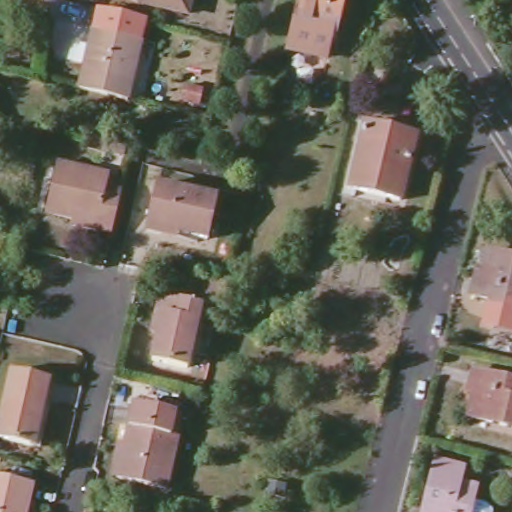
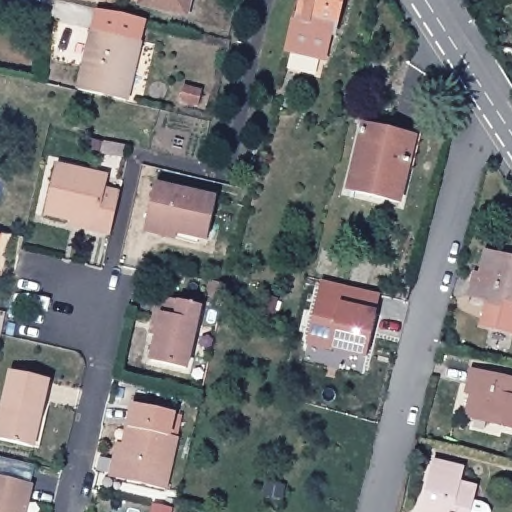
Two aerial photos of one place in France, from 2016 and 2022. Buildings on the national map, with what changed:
unchanged [(145,3),(146,0),(192,0),(189,13),(145,3)]
unchanged [(306,0),(345,0),(337,32),(334,31),(327,56),(289,47),(300,3),(300,2),(305,4),(306,0)]
unchanged [(144,42),(130,102),(84,91),(99,31),(144,42)]
unchanged [(415,136),(400,202),(350,190),(367,125),(415,136)]
unchanged [(111,176),(109,190),(122,193),(112,234),(97,231),(97,226),(47,214),(59,164),(111,176)]
unchanged [(212,200),(204,242),(170,235),(172,230),(144,224),(152,187),(212,200)]
unchanged [(512,306),(469,297),(473,280),(483,282),(490,253),(512,258),(512,306)]
new [(366,359),(331,351),(307,345),(320,282),(380,294),(366,359)]
unchanged [(202,302),(189,363),(153,355),(163,310),(157,309),(161,293),(202,302)]
unchanged [(512,424),(473,415),(479,387),(467,384),(472,367),(512,377),(512,424)]
unchanged [(50,380),(42,416),(37,415),(30,446),(0,440),(0,424),(12,372),(50,380)]
unchanged [(172,411),(167,435),(175,437),(165,485),(115,473),(123,439),(132,402),(172,411)]
unchanged [(435,463),(462,470),(457,485),(475,490),(472,503),(483,506),(487,508),(490,511),(491,512),(422,512),(435,463)]
unchanged [(32,484),(25,512),(0,512),(0,477),(32,484)]

